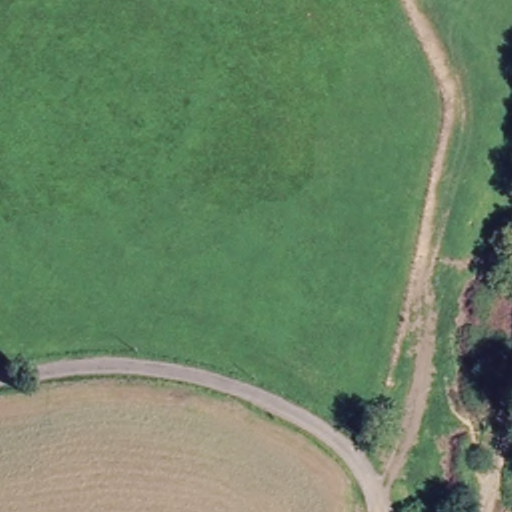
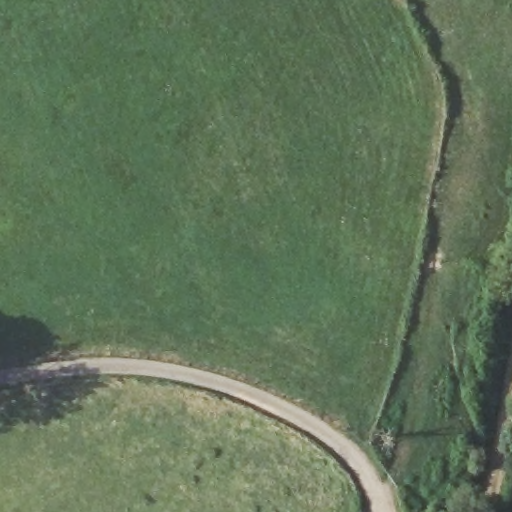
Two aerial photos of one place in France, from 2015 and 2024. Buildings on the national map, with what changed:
[]

